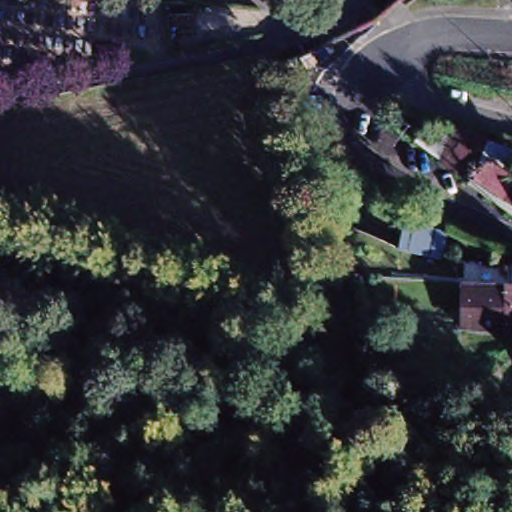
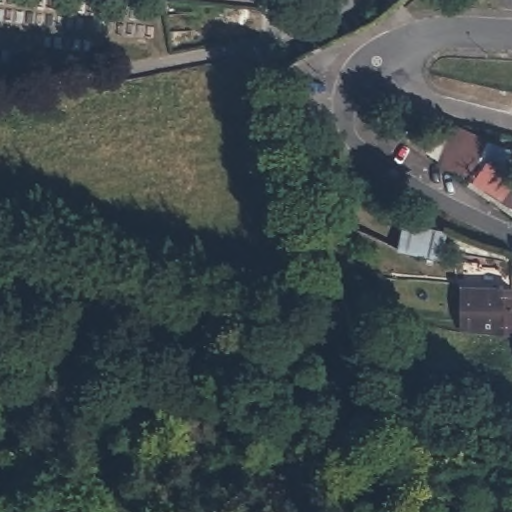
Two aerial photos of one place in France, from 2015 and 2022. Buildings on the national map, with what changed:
unchanged [(395,8),(389,0),(405,0),(395,8)]
unchanged [(453,119),(486,133),(464,170),(437,155),(453,119)]
unchanged [(490,158),(512,173),(512,183),(511,184),(512,185),(512,213),(465,177),(490,158)]
unchanged [(511,184),(512,183),(512,185),(511,184)]
unchanged [(442,233),(437,257),(399,249),(404,225),(442,233)]
unchanged [(463,286),(512,287),(512,333),(496,332),(462,327),(463,286)]

